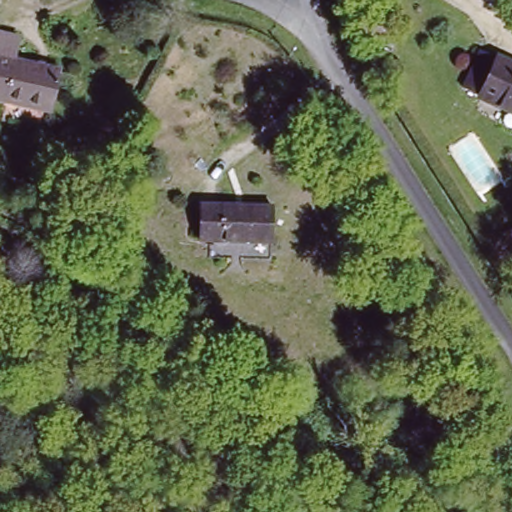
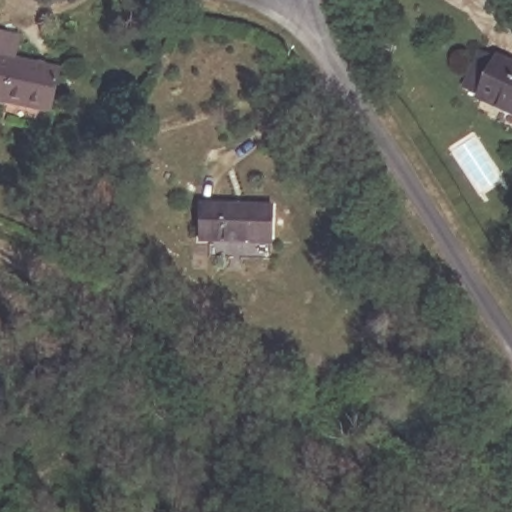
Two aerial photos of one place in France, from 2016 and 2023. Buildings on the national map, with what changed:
unchanged [(14,39),(9,63),(55,72),(47,110),(5,101),(0,100),(0,36),(14,39)]
unchanged [(484,95),(504,55),(512,60),(512,110),(484,95)]
unchanged [(272,201),(277,243),(200,244),(197,201),(272,201)]

